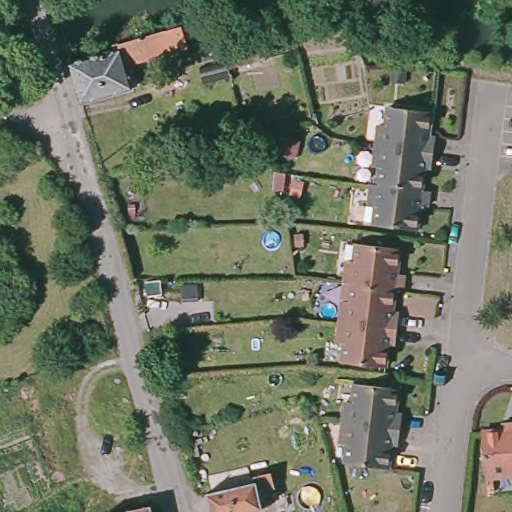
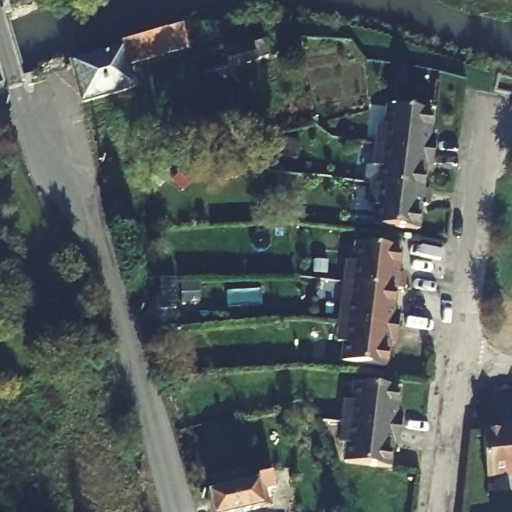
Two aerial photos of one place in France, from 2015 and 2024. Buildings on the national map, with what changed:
unchanged [(162,31),(167,54),(122,67),(128,90),(78,103),(67,66),(110,54),(108,47),(162,31)]
unchanged [(199,71),(227,62),(222,39),(227,37),(230,48),(252,42),(253,48),(264,46),(267,60),(230,70),(231,79),(205,88),(199,71)]
unchanged [(377,124),(385,124),(387,107),(429,112),(426,132),(434,133),(431,152),(375,144),(377,124)]
unchanged [(324,124),(331,155),(313,159),(282,168),(276,141),(273,142),(272,138),(312,127),(324,124)]
unchanged [(378,184),(379,167),(372,166),(375,144),(431,152),(430,166),(423,166),(420,189),(378,184)]
unchanged [(420,189),(427,190),(425,206),(418,205),(415,228),(372,224),(375,206),(368,205),(370,184),(378,184),(420,189)]
unchanged [(348,288),(342,288),(345,267),(351,268),(355,249),(396,254),(393,280),(401,281),(399,294),(392,293),(348,288)]
unchanged [(340,307),(346,308),(348,288),(392,293),(390,318),(396,319),(395,334),(338,327),(340,307)]
unchanged [(393,349),(386,348),(382,373),(340,368),(341,349),(335,348),(338,327),(395,334),(393,349)]
unchanged [(344,403),(352,404),(355,384),(397,389),(394,412),(400,414),(399,430),(342,423),(344,403)]
unchanged [(399,430),(397,444),(390,444),(387,469),(345,464),(347,445),(340,444),(342,423),(399,430)]
unchanged [(512,430),(512,476),(485,479),(480,433),(512,430)]
unchanged [(200,499),(250,488),(247,480),(267,474),(271,494),(263,495),(265,502),(260,503),(262,512),(203,512),(200,501),(200,499)]
unchanged [(148,512),(127,512),(147,507),(148,512)]

